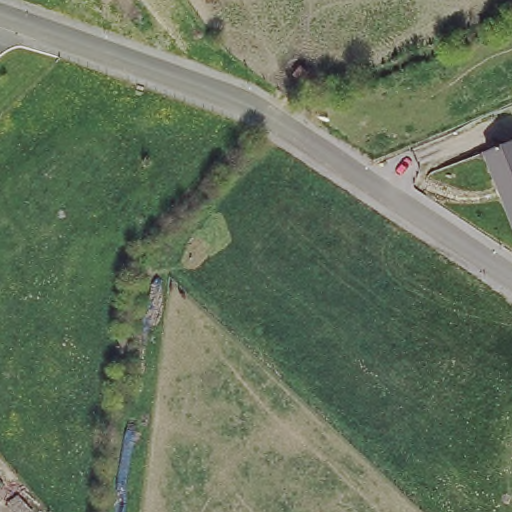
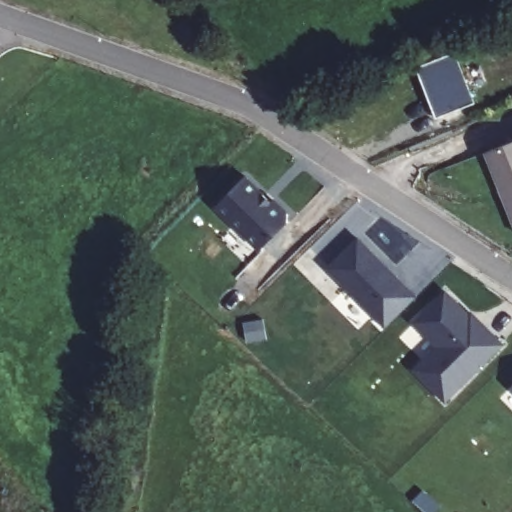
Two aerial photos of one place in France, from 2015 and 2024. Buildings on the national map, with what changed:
new [(475,100),(438,114),(420,67),(456,53),(475,100)]
unchanged [(492,154),(512,145),(512,201),(511,199),(506,187),(492,154)]
new [(216,208),(248,175),(265,191),(272,191),(272,200),(290,219),(260,251),(216,208)]
new [(390,326),(331,268),(361,239),(383,262),(382,263),(389,271),(391,269),(419,297),(390,326)]
new [(448,290),(470,313),(473,310),(505,342),(445,402),(411,370),(436,347),(413,321),(448,290)]

